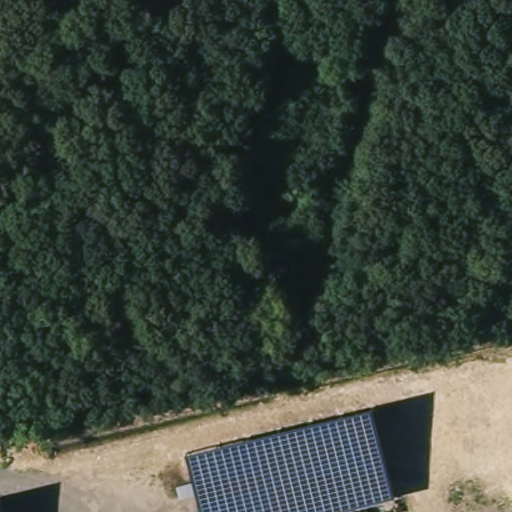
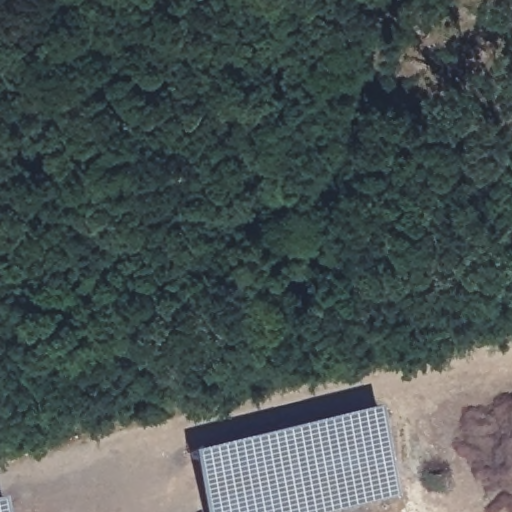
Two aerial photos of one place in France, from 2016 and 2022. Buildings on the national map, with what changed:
unchanged [(186,455),(373,407),(394,496),(330,512),(202,512),(186,455)]

